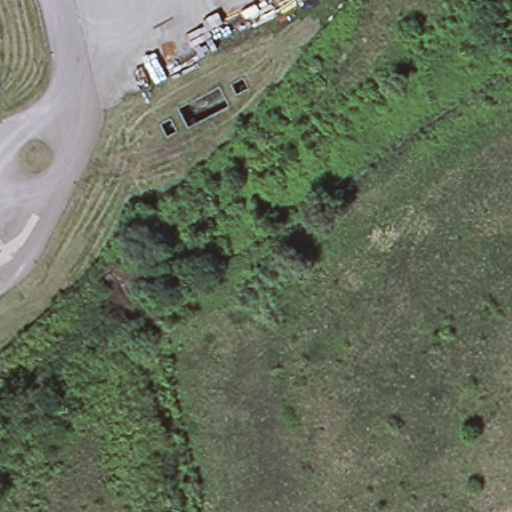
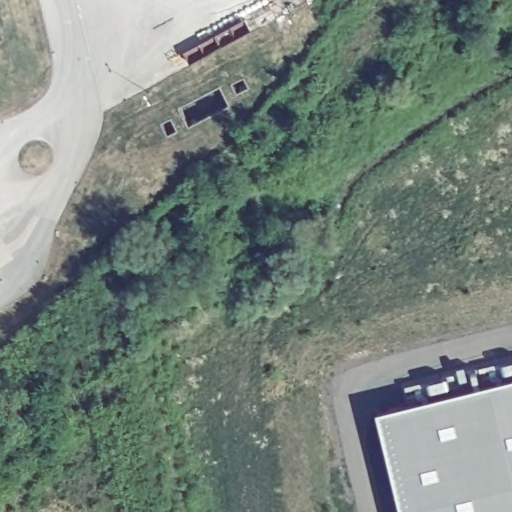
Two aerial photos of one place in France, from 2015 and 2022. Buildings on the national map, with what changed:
new [(419,405),(417,396),(408,399),(404,389),(457,375),(455,370),(464,369),(464,372),(512,361),(512,512),(403,512),(379,416),(419,405)]

